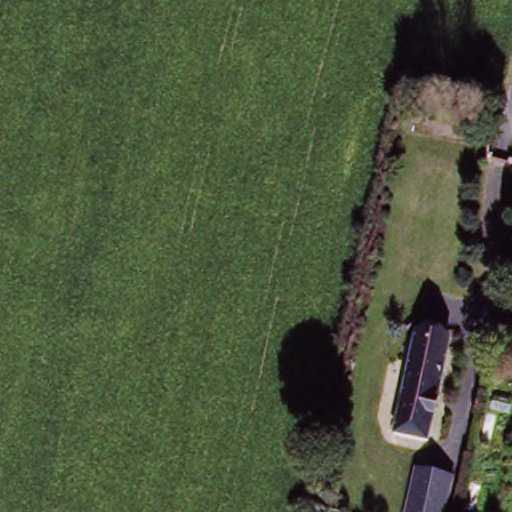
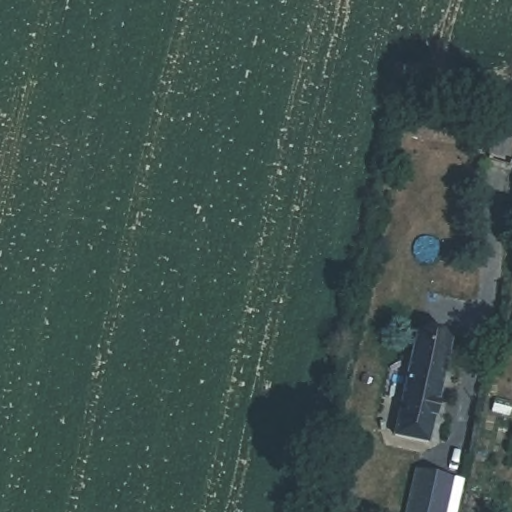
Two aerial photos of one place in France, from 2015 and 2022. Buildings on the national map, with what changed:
unchanged [(422,443),(391,435),(414,333),(447,340),(446,342),(423,439),(422,443)]
unchanged [(461,480),(455,512),(407,512),(416,470),(461,480)]

